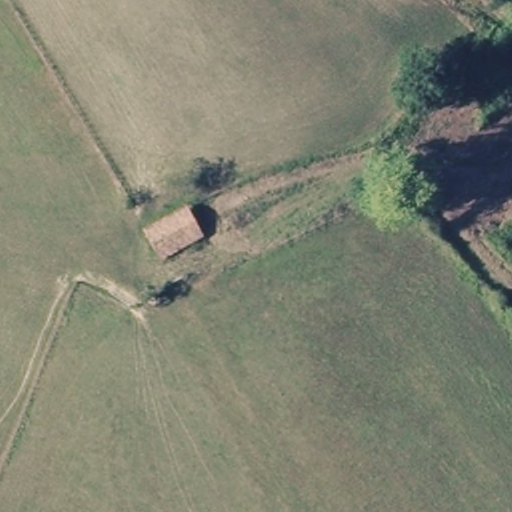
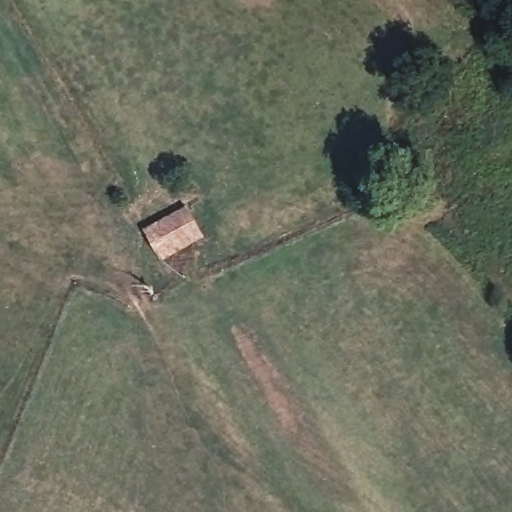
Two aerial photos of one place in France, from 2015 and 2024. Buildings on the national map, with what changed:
unchanged [(165,260),(153,233),(195,219),(206,244),(165,260)]

